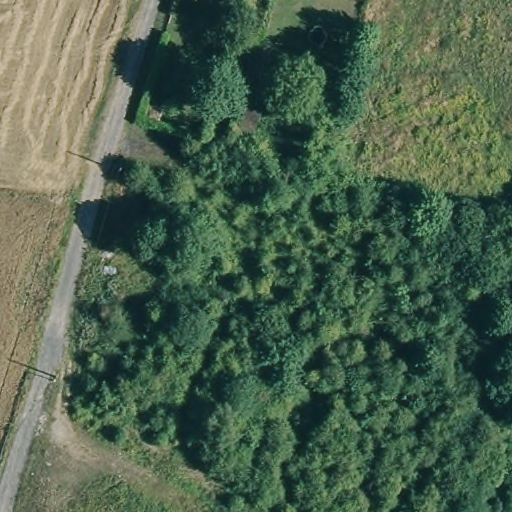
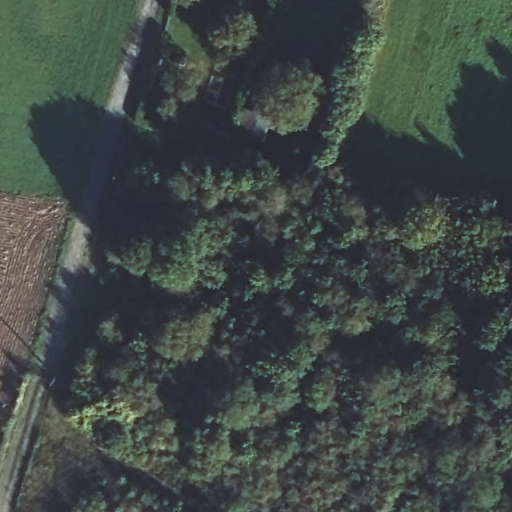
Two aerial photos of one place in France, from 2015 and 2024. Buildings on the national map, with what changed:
[]

